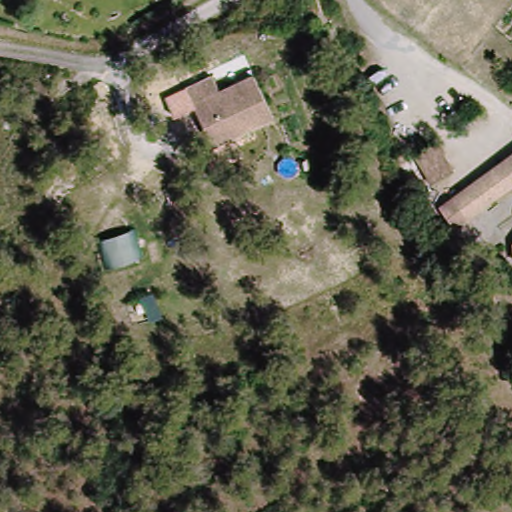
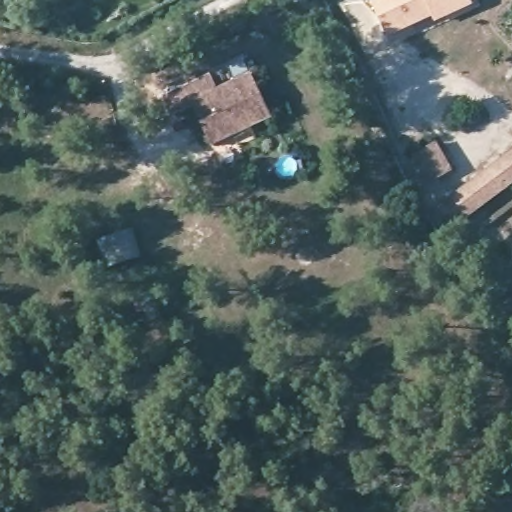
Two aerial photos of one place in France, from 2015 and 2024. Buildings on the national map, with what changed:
new [(474,0),(475,3),(439,19),(436,13),(391,34),(376,1),(378,0),(474,0)]
unchanged [(186,88),(213,76),(220,89),(256,77),(274,121),(214,149),(186,88)]
unchanged [(444,137),(461,162),(432,177),(417,153),(444,137)]
unchanged [(467,218),(453,196),(512,153),(512,188),(467,218)]
unchanged [(509,221),(512,220),(512,229),(509,221)]
unchanged [(145,255),(103,266),(97,238),(136,226),(145,255)]

